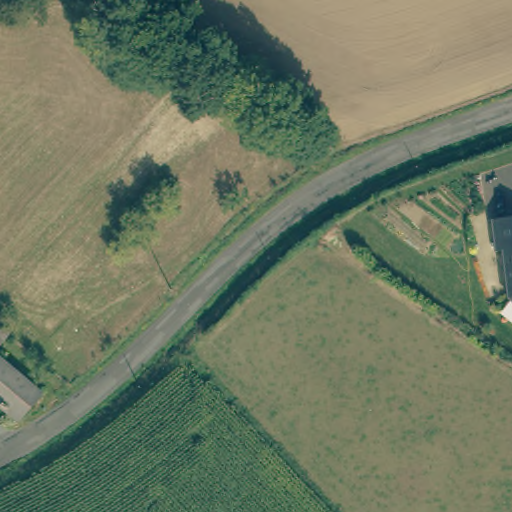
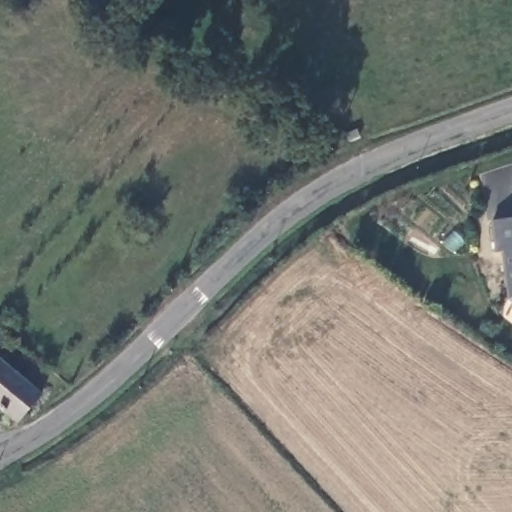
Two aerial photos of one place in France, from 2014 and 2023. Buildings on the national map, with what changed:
unchanged [(499,255),(495,223),(512,220),(512,300),(506,254),(499,255)]
unchanged [(5,331),(0,337),(0,326),(5,331)]
unchanged [(37,391),(18,416),(0,403),(0,360),(37,391)]

